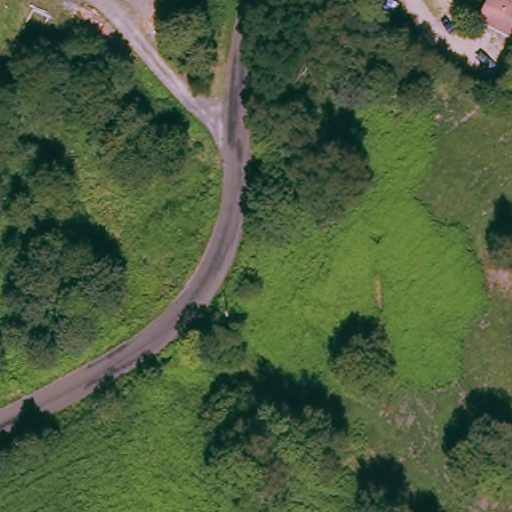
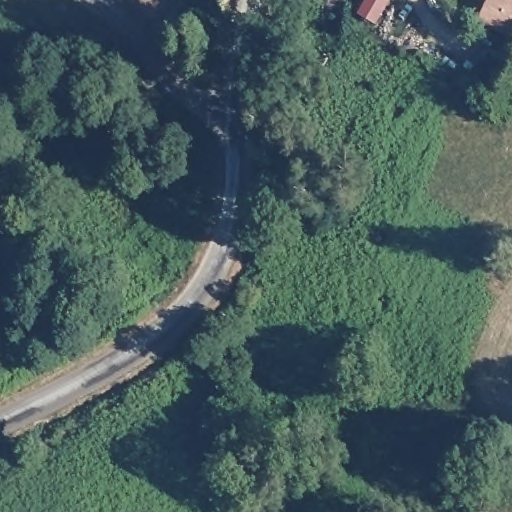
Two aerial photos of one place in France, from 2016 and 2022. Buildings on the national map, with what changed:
unchanged [(380,25),(365,18),(373,0),(386,0),(390,2),(380,25)]
unchanged [(508,41),(479,26),(492,0),(493,0),(512,10),(512,35),(508,41)]

